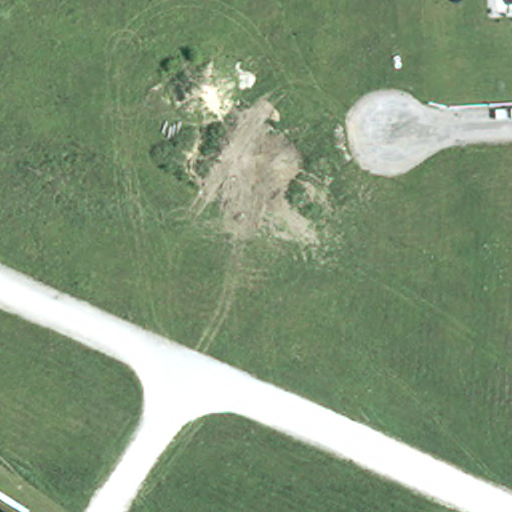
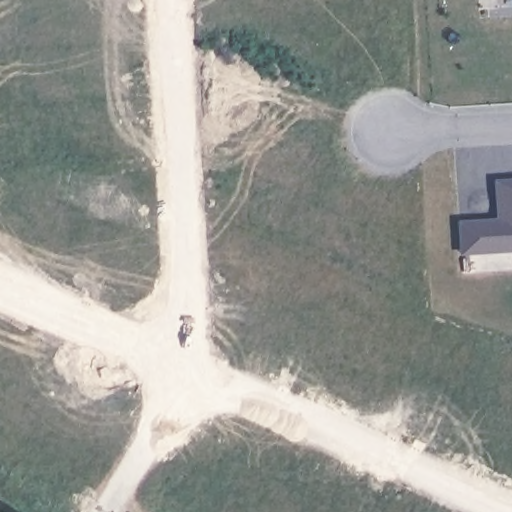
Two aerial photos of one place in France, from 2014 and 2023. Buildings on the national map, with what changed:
new [(495,201),(494,182),(512,181),(512,250),(479,252),(459,253),(456,203),(476,202),(495,201)]

